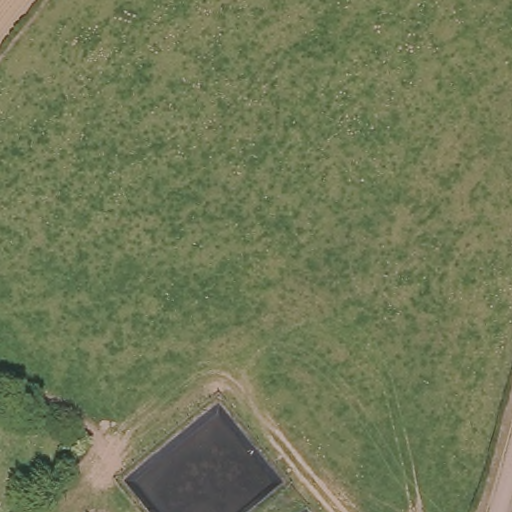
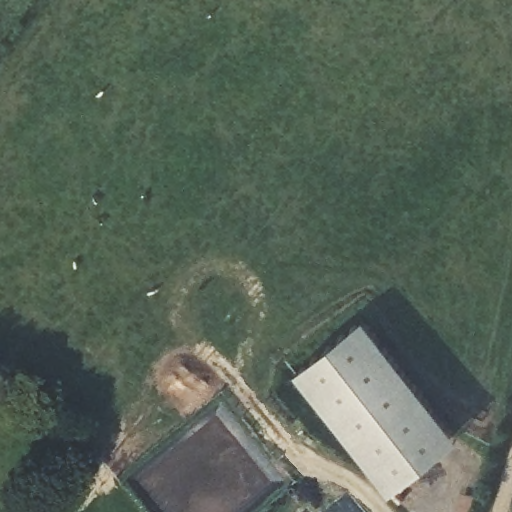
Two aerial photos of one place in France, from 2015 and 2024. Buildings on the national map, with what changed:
new [(453,433),(436,446),(438,450),(388,490),(295,373),(362,320),(453,433)]

